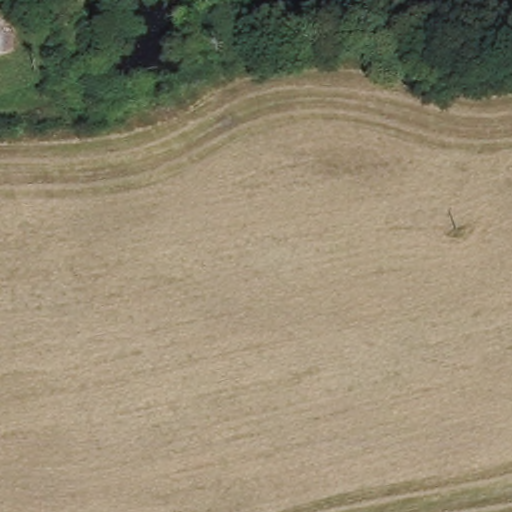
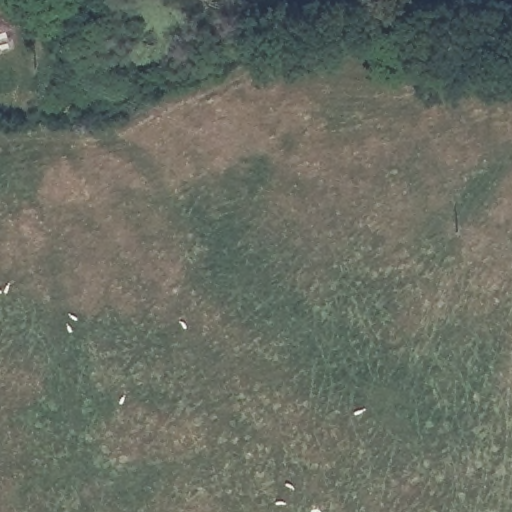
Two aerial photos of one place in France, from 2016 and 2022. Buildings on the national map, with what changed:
[]

